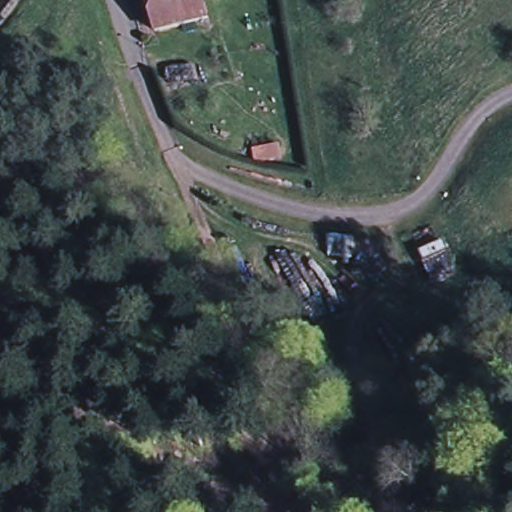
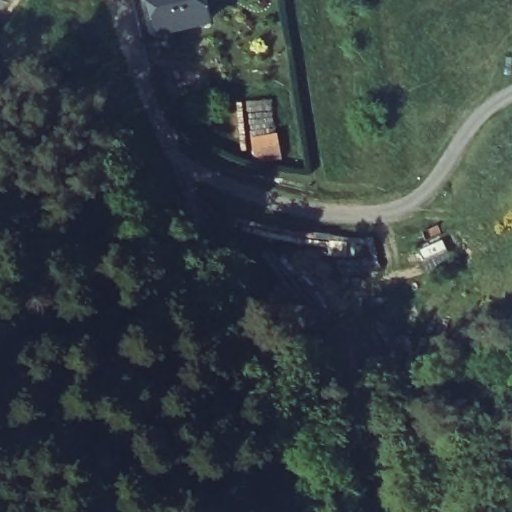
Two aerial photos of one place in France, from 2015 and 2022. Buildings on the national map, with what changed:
unchanged [(209,18),(156,31),(149,0),(205,0),(209,18)]

